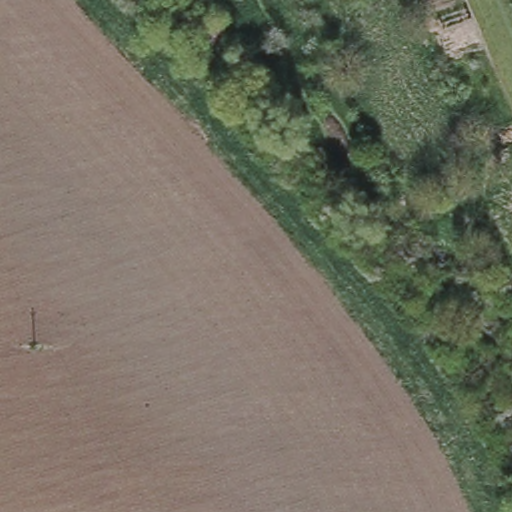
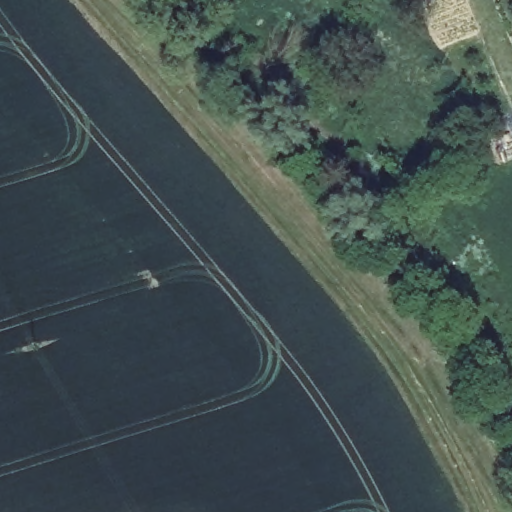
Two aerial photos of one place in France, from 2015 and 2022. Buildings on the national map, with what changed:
[]

